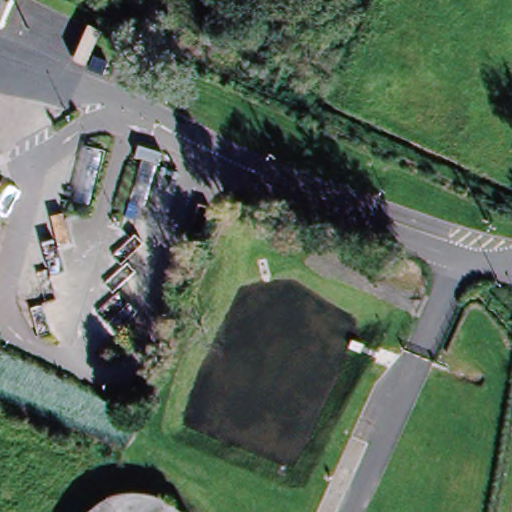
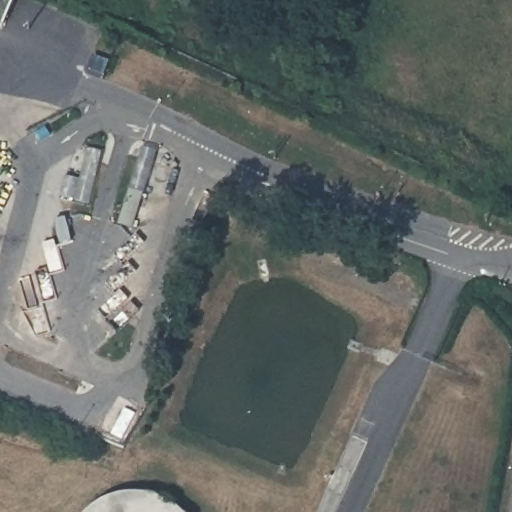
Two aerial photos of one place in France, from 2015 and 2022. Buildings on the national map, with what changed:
unchanged [(0,0),(21,0),(6,34),(0,31),(0,0)]

